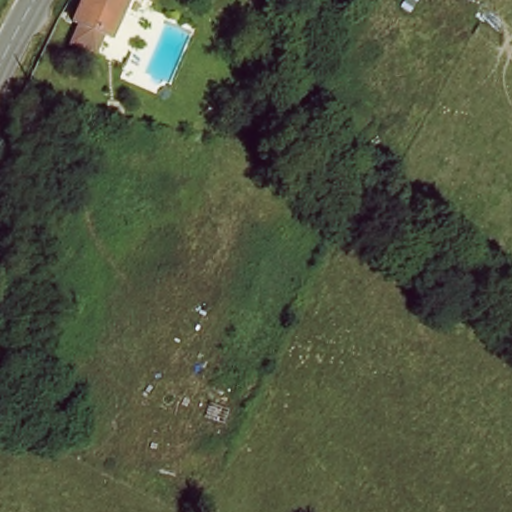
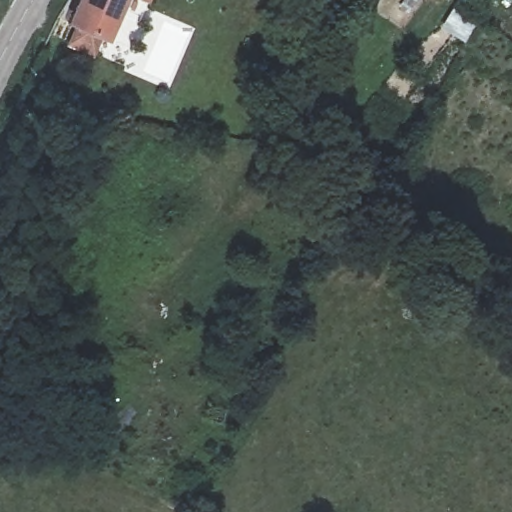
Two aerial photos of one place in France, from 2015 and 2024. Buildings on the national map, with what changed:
unchanged [(76,16),(82,0),(124,0),(112,31),(76,16)]

